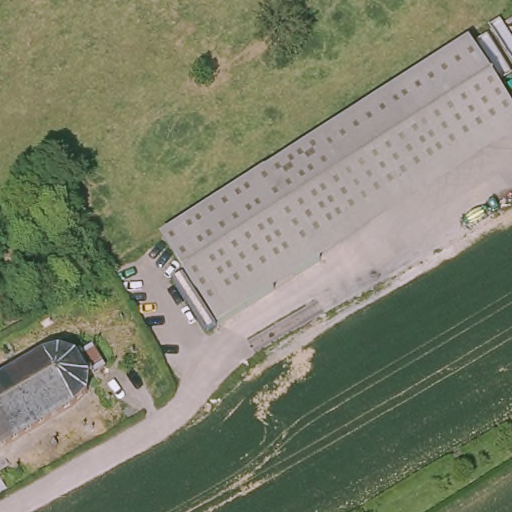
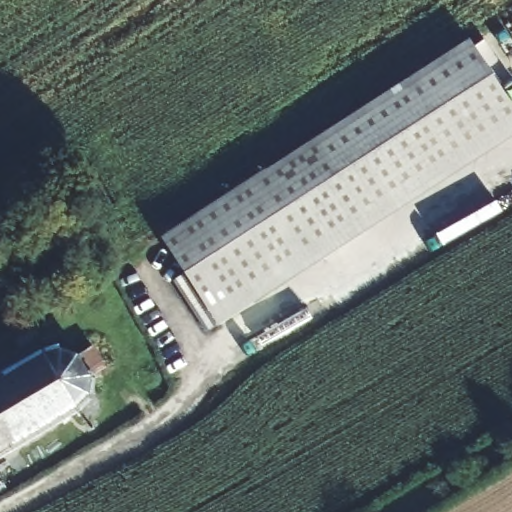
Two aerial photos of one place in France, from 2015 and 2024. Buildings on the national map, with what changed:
unchanged [(512,113),(512,140),(227,324),(170,239),(469,47),(512,113)]
unchanged [(91,378),(88,397),(72,411),(2,451),(0,451),(0,380),(44,355),(62,352),(75,356),(93,346),(107,369),(91,378)]

